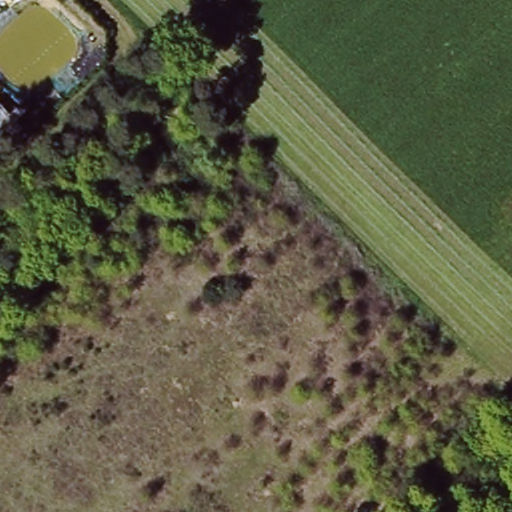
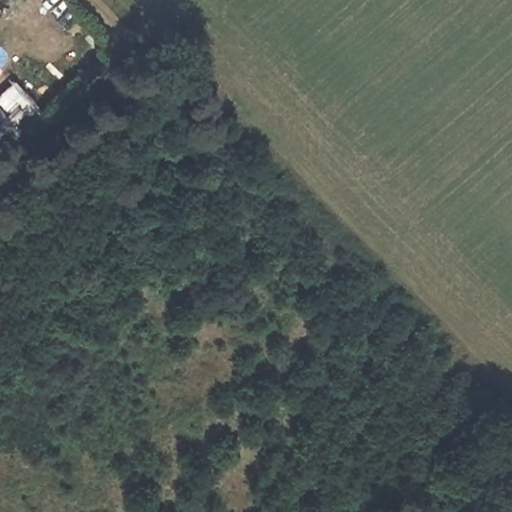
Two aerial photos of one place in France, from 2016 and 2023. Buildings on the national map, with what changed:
[]

